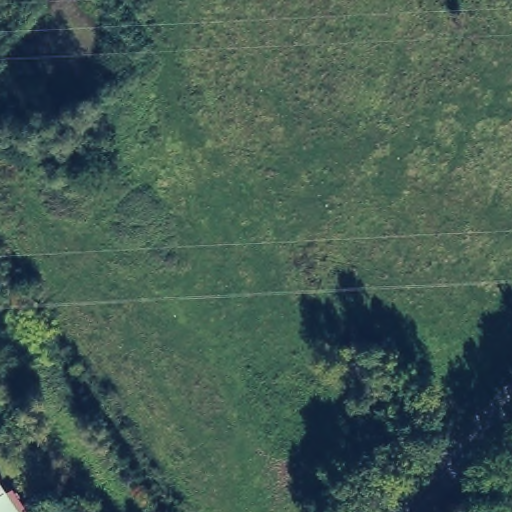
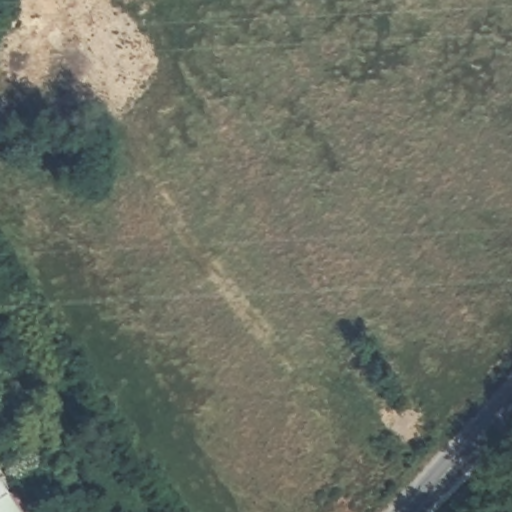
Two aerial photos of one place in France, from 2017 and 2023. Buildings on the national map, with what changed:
unchanged [(17,512),(0,512),(0,488),(17,512)]

